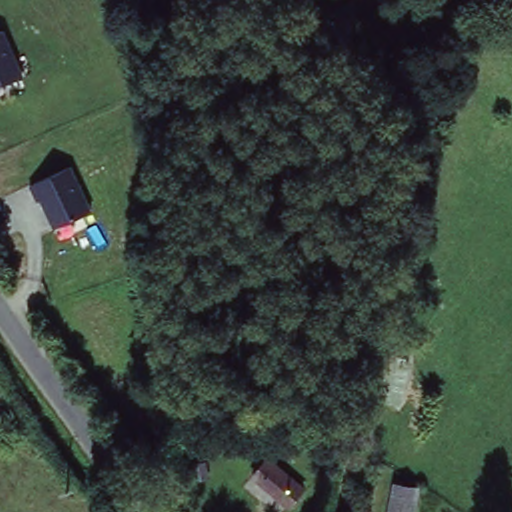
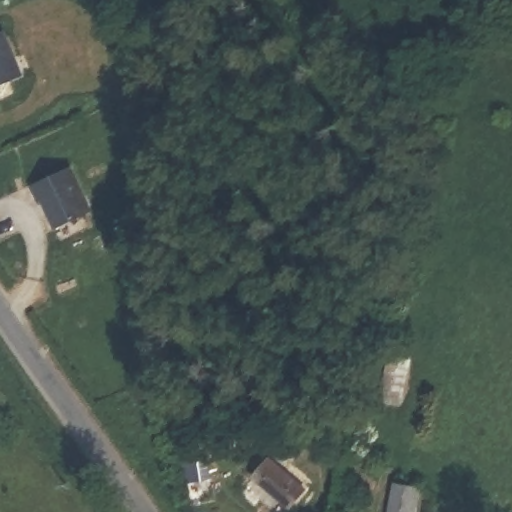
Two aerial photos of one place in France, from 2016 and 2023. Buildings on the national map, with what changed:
unchanged [(21,77),(0,85),(0,38),(21,77)]
unchanged [(54,230),(34,185),(72,167),(92,211),(54,230)]
unchanged [(413,356),(403,406),(377,402),(390,352),(413,356)]
unchanged [(304,488),(290,508),(252,481),(265,461),(304,488)]
unchanged [(419,494),(416,512),(391,512),(394,490),(419,494)]

